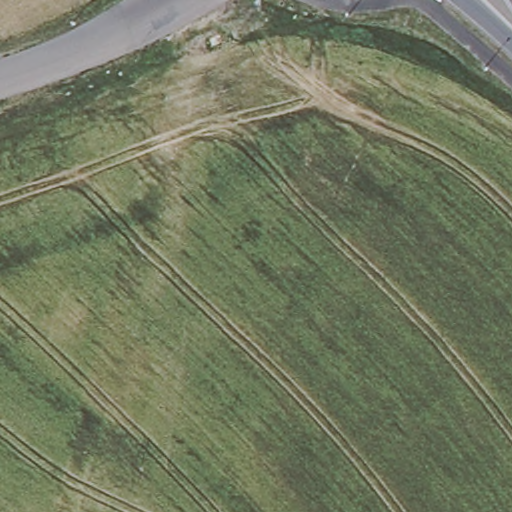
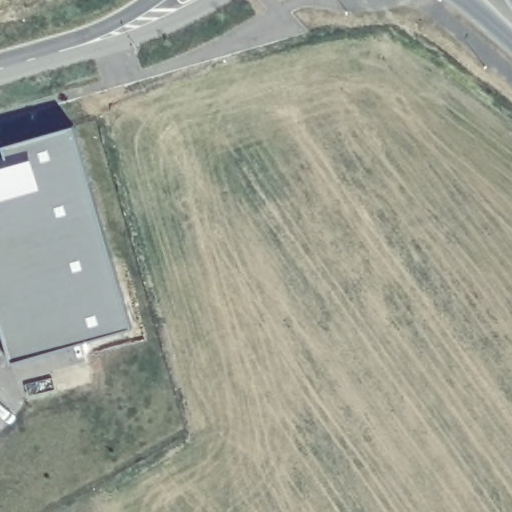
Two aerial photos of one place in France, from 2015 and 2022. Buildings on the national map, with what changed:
new [(7,156),(4,146),(75,125),(130,328),(10,364),(0,330),(0,158),(7,156)]

